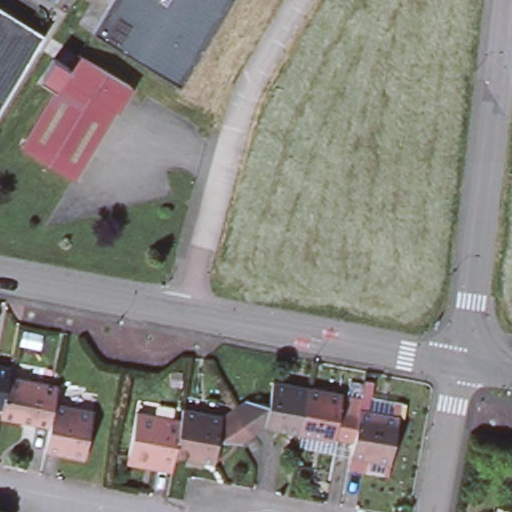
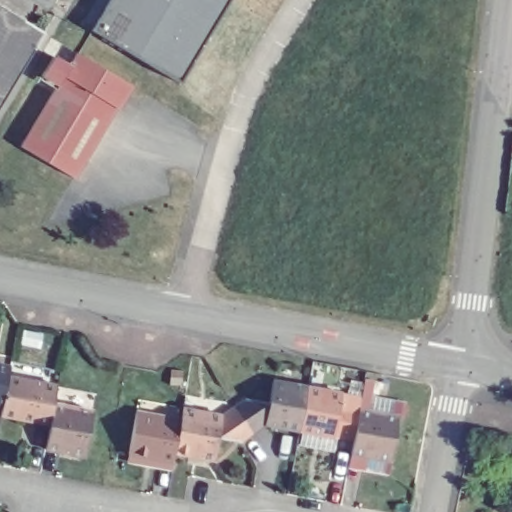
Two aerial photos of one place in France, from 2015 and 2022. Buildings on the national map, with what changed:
unchanged [(110,0),(230,0),(180,84),(92,30),(110,0)]
unchanged [(35,49),(17,76),(15,80),(0,105),(0,23),(37,45),(35,49)]
unchanged [(120,106),(116,107),(73,178),(21,146),(58,85),(42,75),(53,56),(56,58),(63,45),(77,53),(130,85),(123,95),(123,99),(120,106)]
unchanged [(0,365),(10,366),(7,376),(2,405),(0,405),(0,365)]
unchanged [(0,415),(2,405),(7,376),(57,385),(53,404),(50,425),(0,415)]
unchanged [(265,425),(253,432),(235,406),(246,398),(268,402),(272,380),(307,387),(299,430),(265,425)]
unchanged [(390,461),(350,454),(353,440),(299,430),(307,387),(341,393),(361,397),(358,409),(398,416),(390,461)]
unchanged [(92,411),(84,456),(45,449),(50,425),(53,404),(92,411)]
unchanged [(240,442),(217,438),(213,460),(174,453),(180,420),(182,408),(222,415),(235,406),(253,432),(240,442)]
unchanged [(128,455),(136,411),(180,420),(174,453),(172,463),(128,455)]

